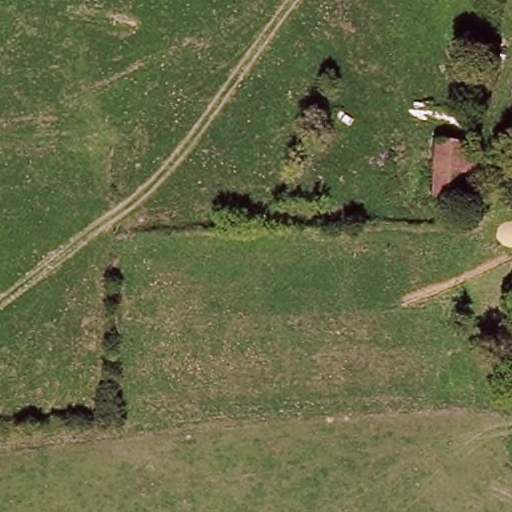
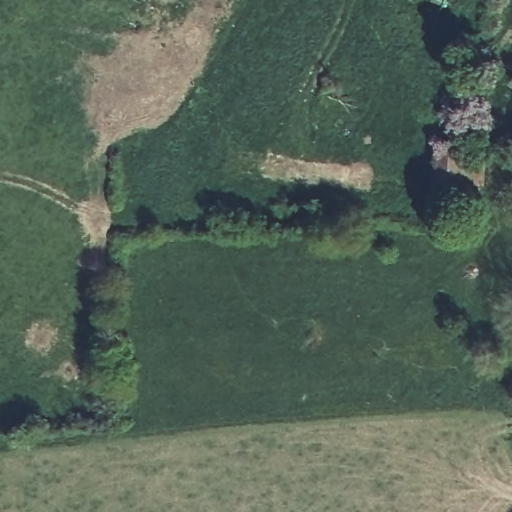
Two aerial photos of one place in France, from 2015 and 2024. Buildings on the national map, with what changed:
unchanged [(451,180),(421,176),(427,119),(455,122),(453,136),(473,138),(470,177),(452,175),(451,180)]

